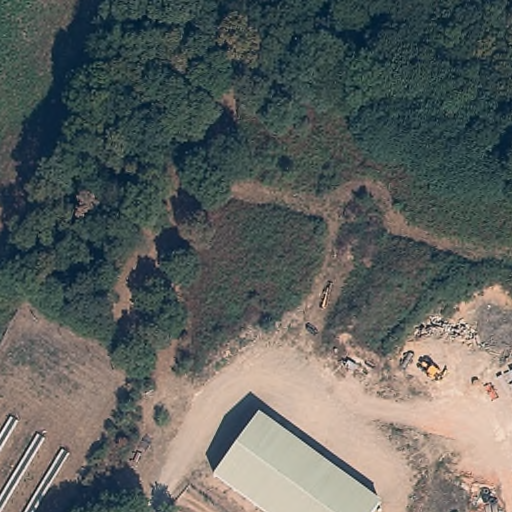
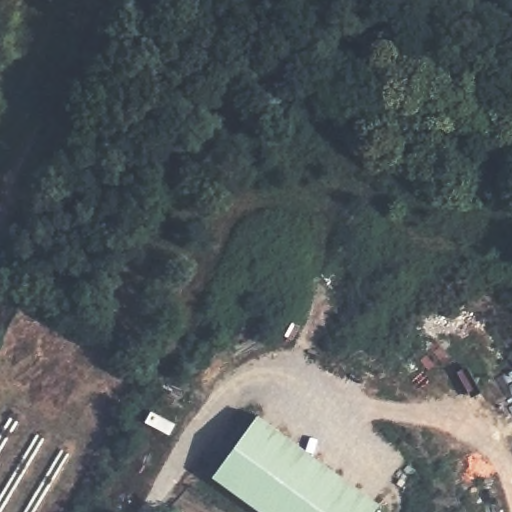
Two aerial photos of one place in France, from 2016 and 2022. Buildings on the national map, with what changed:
unchanged [(373,512),(262,512),(214,476),(260,413),(381,501),(373,512)]

